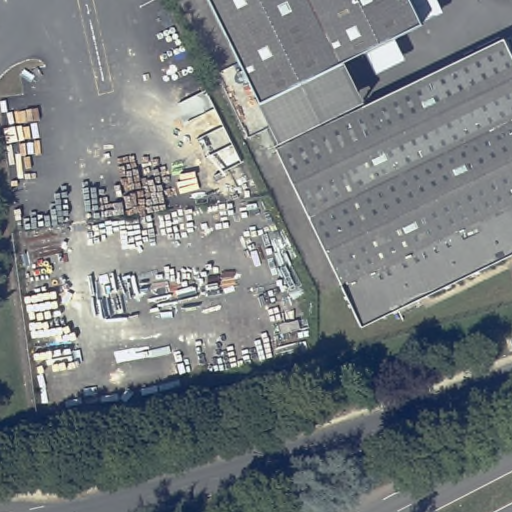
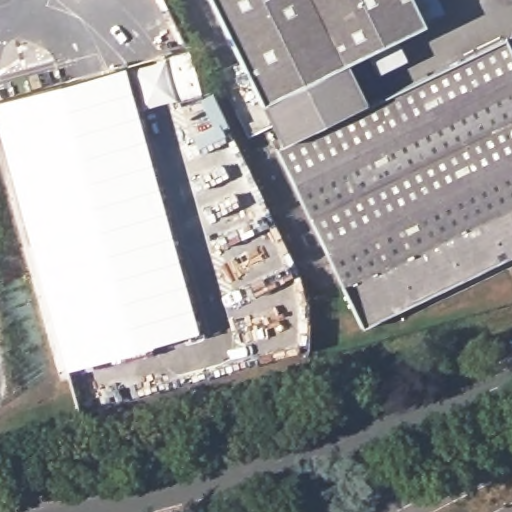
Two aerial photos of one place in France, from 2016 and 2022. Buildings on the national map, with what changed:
unchanged [(411,0),(425,30),(344,70),(263,110),(210,0),(411,0)]
unchanged [(285,154),(366,115),(509,46),(512,53),(512,262),(366,332),(281,155),(285,154)]
new [(199,92),(176,99),(164,58),(187,51),(199,92)]
new [(64,372),(0,144),(0,101),(123,67),(196,333),(64,372)]
unchanged [(366,115),(285,154),(263,110),(344,70),(366,115)]

